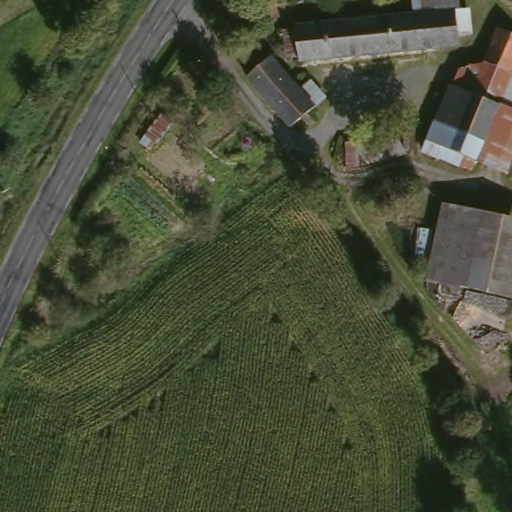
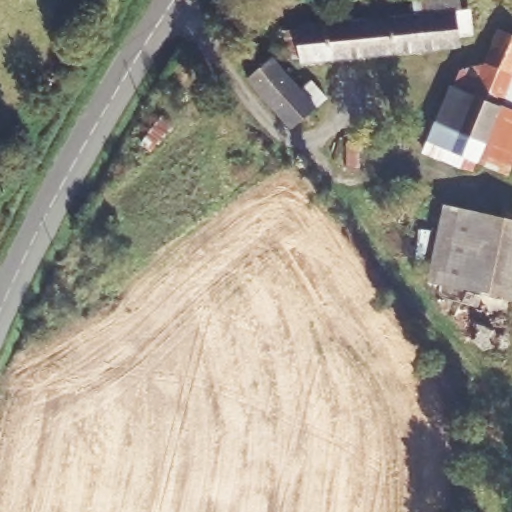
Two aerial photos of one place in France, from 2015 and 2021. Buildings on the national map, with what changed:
unchanged [(416,0),(461,0),(462,3),(470,2),(472,28),(462,29),(463,40),(306,55),(303,18),(416,7),(416,0)]
unchanged [(512,31),(512,77),(485,65),(505,28),(512,31)]
unchanged [(250,76),(273,54),(300,86),(315,74),(332,93),(317,106),(294,126),(250,76)]
unchanged [(456,87),(485,65),(512,77),(512,89),(504,105),(456,87)]
unchanged [(474,158),(471,171),(423,156),(452,85),(456,87),(504,105),(480,162),(474,158)]
unchanged [(512,175),(480,162),(504,105),(512,108),(512,175)]
unchanged [(512,296),(438,280),(454,202),(512,215),(512,296)]

